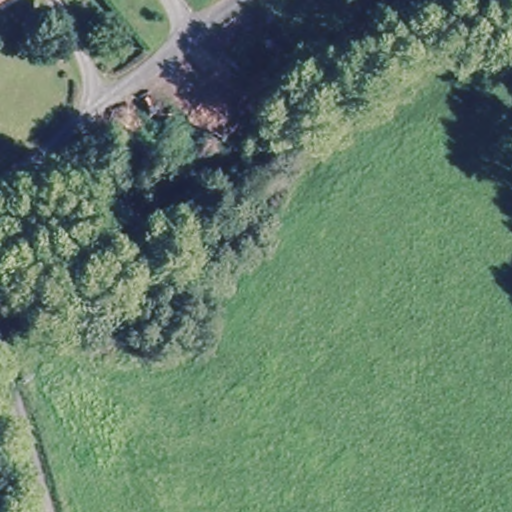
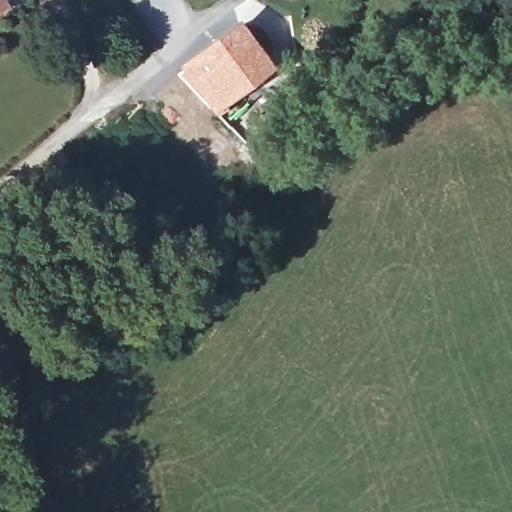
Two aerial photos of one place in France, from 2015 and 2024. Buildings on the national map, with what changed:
new [(243,14),(279,61),(216,110),(177,64),(243,14)]

